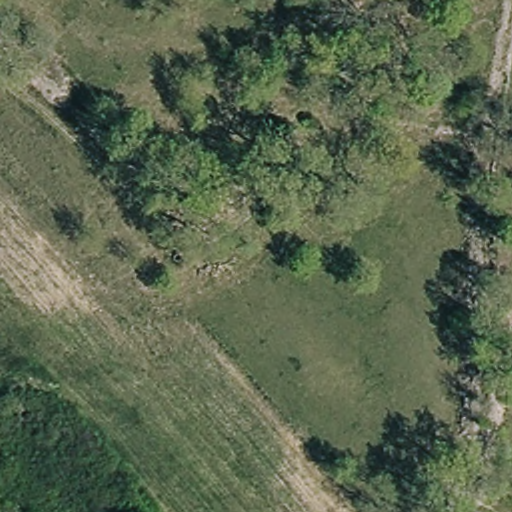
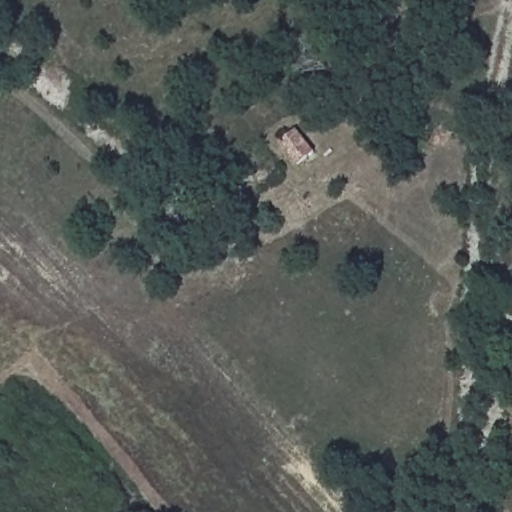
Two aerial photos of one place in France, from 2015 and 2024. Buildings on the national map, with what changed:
unchanged [(315,154),(298,166),(278,142),(298,129),(315,154)]

